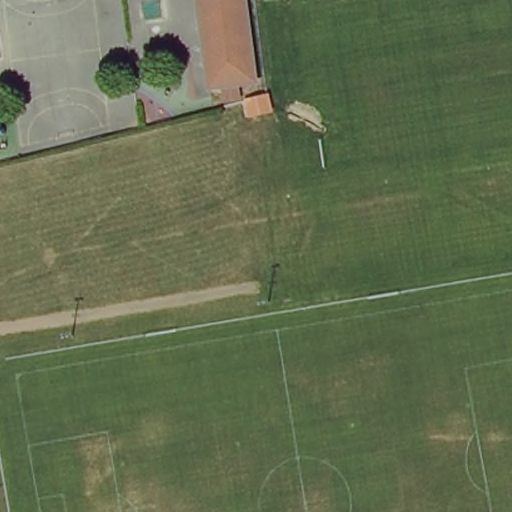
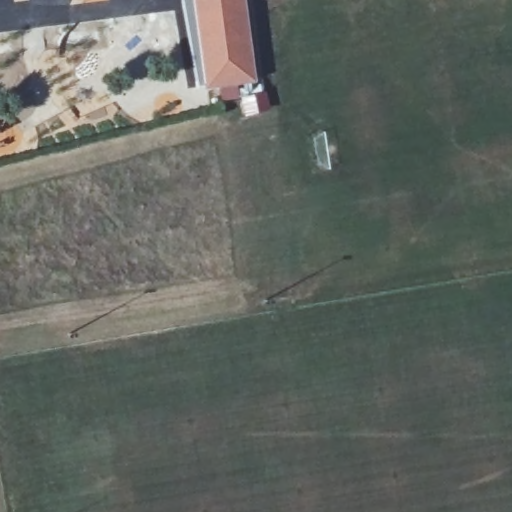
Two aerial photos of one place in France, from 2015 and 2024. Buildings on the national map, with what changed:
unchanged [(258,80),(211,84),(200,0),(248,0),(258,80)]
unchanged [(250,99),(275,92),(280,111),(254,117),(250,99)]

